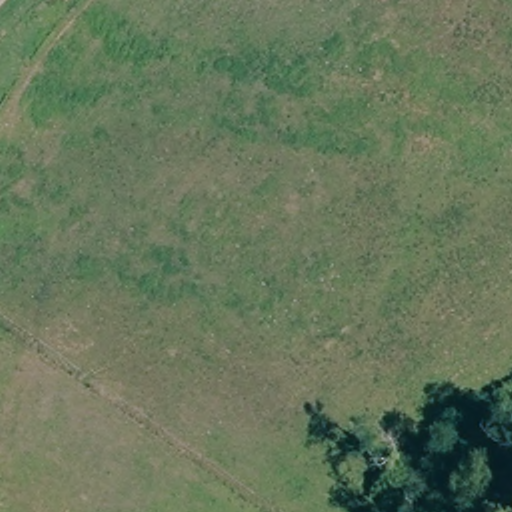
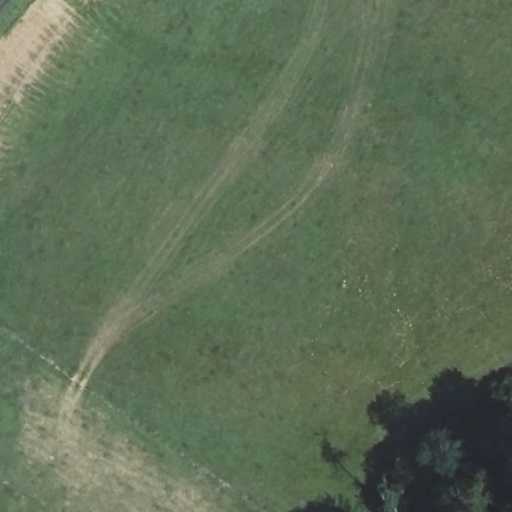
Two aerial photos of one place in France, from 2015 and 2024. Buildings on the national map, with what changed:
[]

